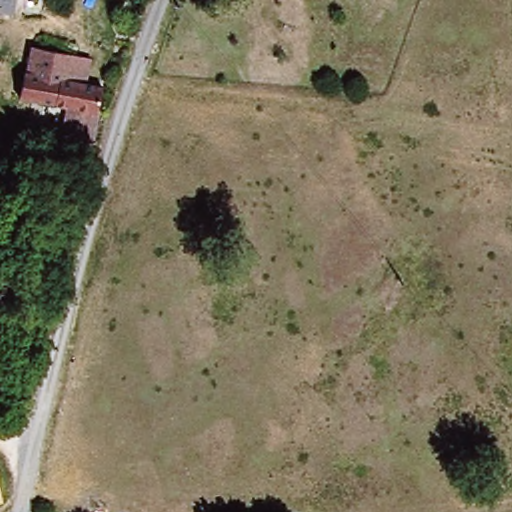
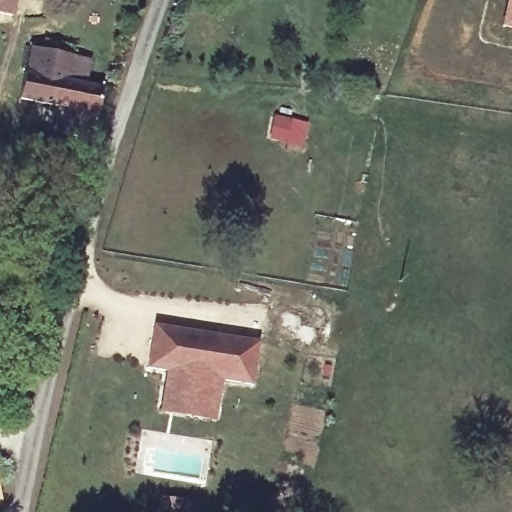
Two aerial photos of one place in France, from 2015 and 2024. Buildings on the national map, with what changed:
demolished [(17,12),(0,10),(0,0),(20,0),(17,12)]
new [(512,25),(504,23),(509,0),(512,0),(512,25)]
unchanged [(74,103),(24,99),(27,70),(32,70),(34,46),(71,50),(82,51),(79,77),(106,80),(104,132),(72,129),(74,103)]
new [(259,340),(252,385),(223,380),(217,418),(160,410),(166,371),(145,367),(152,323),(259,340)]
unchanged [(9,501),(0,503),(0,463),(9,501)]

